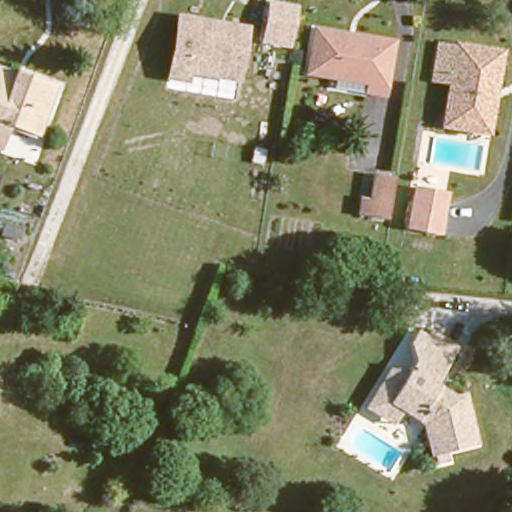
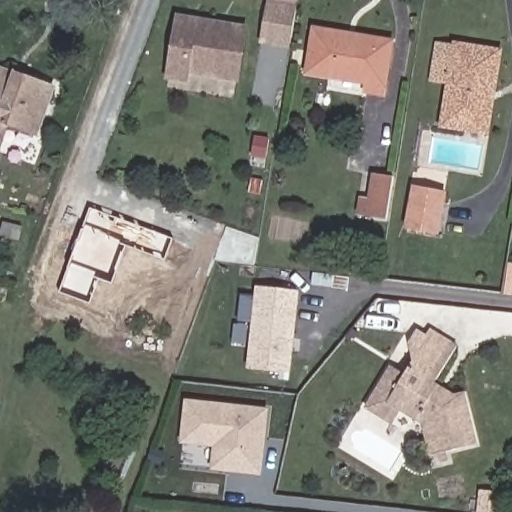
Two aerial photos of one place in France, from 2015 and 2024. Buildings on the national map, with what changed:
new [(290,49),(260,44),(268,0),(298,0),(297,2),(290,49)]
unchanged [(242,82),(193,75),(191,83),(163,80),(175,14),(251,24),(242,82)]
unchanged [(355,85),(357,75),(301,63),(311,21),(390,39),(376,90),(355,85)]
unchanged [(462,115),(438,110),(448,67),(430,64),(437,32),(498,44),(485,108),(482,120),(462,115)]
unchanged [(11,115),(2,138),(0,137),(0,63),(55,84),(39,126),(11,115)]
unchanged [(356,212),(360,192),(373,194),(379,165),(395,168),(384,217),(356,212)]
unchanged [(408,219),(417,177),(447,183),(439,225),(408,219)]
new [(126,245),(112,283),(100,279),(90,304),(60,292),(90,206),(173,238),(165,260),(126,245)]
new [(299,291),(291,373),(247,368),(256,286),(277,289),(299,291)]
unchanged [(371,395),(380,382),(398,355),(414,365),(422,353),(416,334),(424,322),(457,342),(436,374),(469,394),(475,437),(429,442),(424,411),(406,399),(397,412),(371,395)]
new [(246,472),(209,471),(212,448),(179,444),(184,398),(269,408),(262,476),(246,472)]

